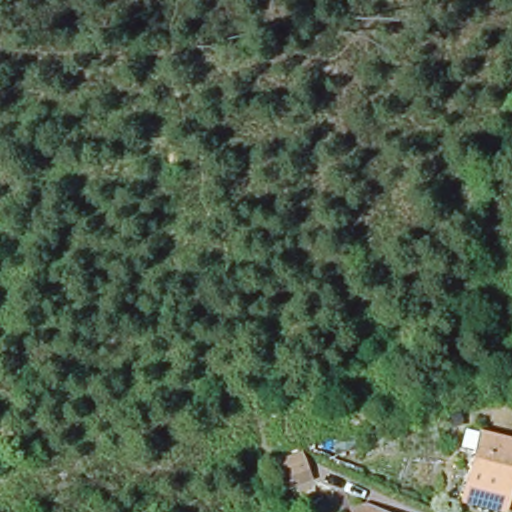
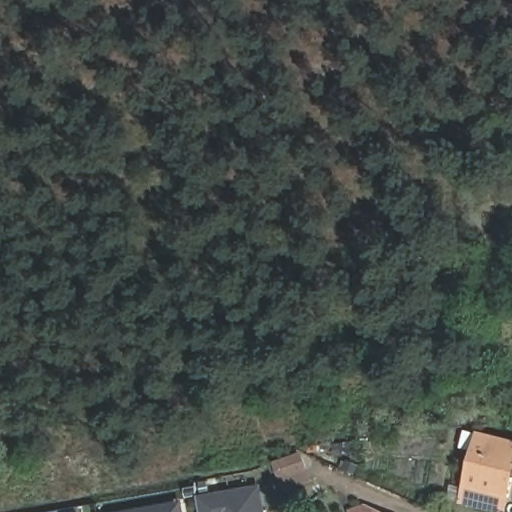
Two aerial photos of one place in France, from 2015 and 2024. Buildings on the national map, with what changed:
unchanged [(482,439),(512,446),(512,491),(509,502),(507,512),(493,512),(466,505),(482,439)]
unchanged [(308,461),(315,485),(286,495),(279,471),(308,461)]
new [(200,512),(198,498),(259,487),(264,512),(200,512)]
new [(181,512),(131,512),(179,503),(181,512)]
unchanged [(369,505),(388,512),(350,512),(349,510),(369,505)]

